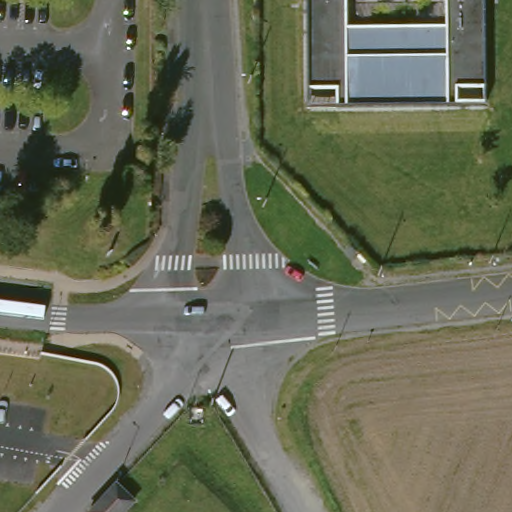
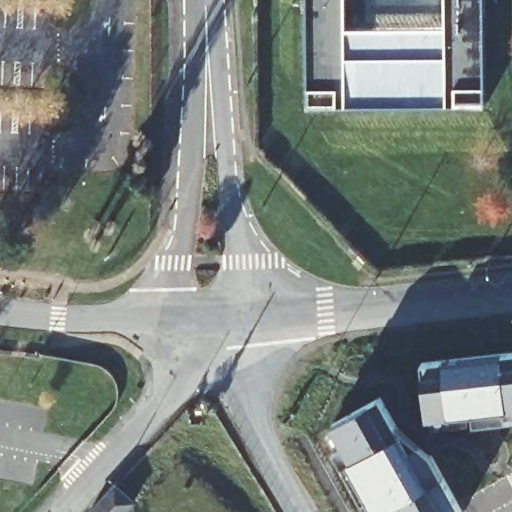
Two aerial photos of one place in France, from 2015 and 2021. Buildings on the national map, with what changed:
unchanged [(303,0),(343,0),(345,27),(437,27),(436,0),(482,0),(485,89),(452,90),(451,110),(331,112),(333,94),(304,95),(303,0)]
new [(512,352),(512,408),(508,408),(510,420),(476,423),(475,412),(430,417),(423,362),(512,352)]
new [(381,402),(411,456),(421,450),(431,460),(461,512),(370,512),(370,502),(350,467),(342,471),(334,456),(345,449),(333,428),(381,402)]
unchanged [(138,512),(94,512),(119,485),(142,508),(138,512)]

